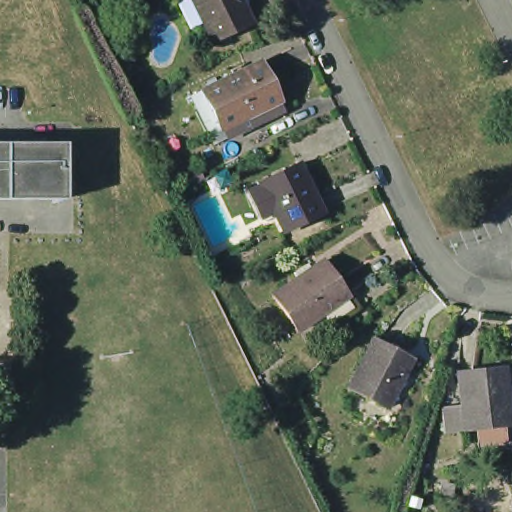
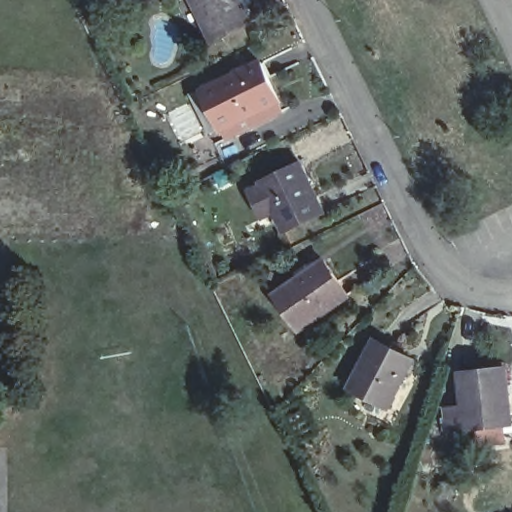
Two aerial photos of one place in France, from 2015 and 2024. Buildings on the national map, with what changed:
unchanged [(190,0),(235,0),(245,21),(208,41),(190,0)]
unchanged [(95,35),(87,18),(100,13),(107,29),(95,35)]
unchanged [(222,130),(218,121),(215,122),(200,85),(255,59),(272,96),(270,96),(274,105),(222,130)]
demolished [(0,200),(0,144),(7,144),(56,144),(57,200),(0,200)]
unchanged [(274,235),(250,182),(290,164),(314,217),(274,235)]
unchanged [(300,331),(278,293),(321,263),(345,299),(300,331)]
unchanged [(353,392),(376,343),(416,362),(393,411),(353,392)]
unchanged [(446,405),(464,403),(460,368),(505,365),(509,418),(466,423),(447,425),(446,405)]

